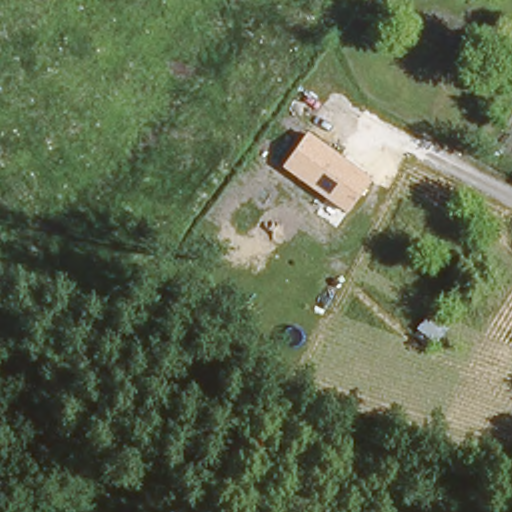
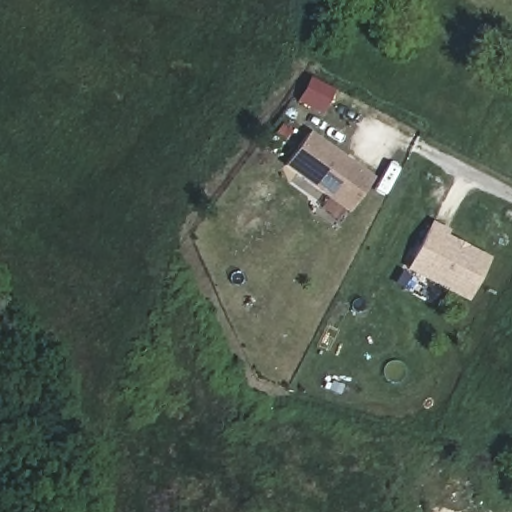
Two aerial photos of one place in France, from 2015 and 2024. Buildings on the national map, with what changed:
unchanged [(348,212),(284,168),(308,134),(372,177),(348,212)]
new [(427,224),(442,232),(440,236),(484,259),(463,299),(404,268),(427,224)]

